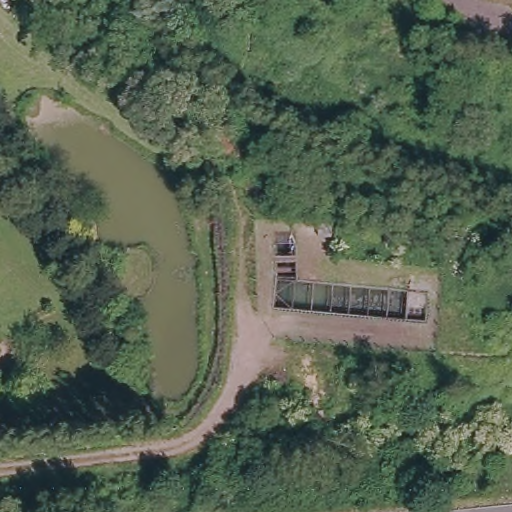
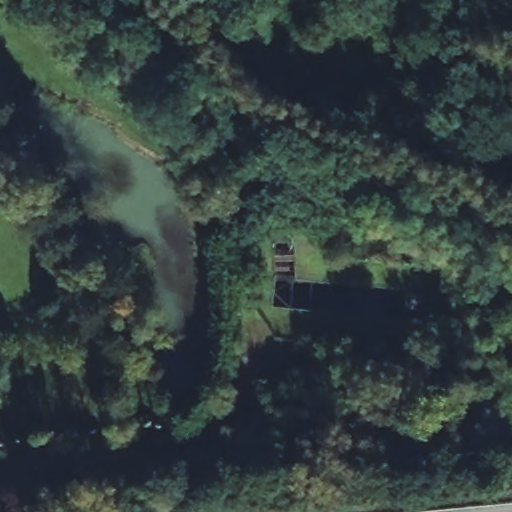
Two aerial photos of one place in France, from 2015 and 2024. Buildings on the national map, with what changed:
unchanged [(460,432),(440,432),(441,412),(460,412),(460,432)]

